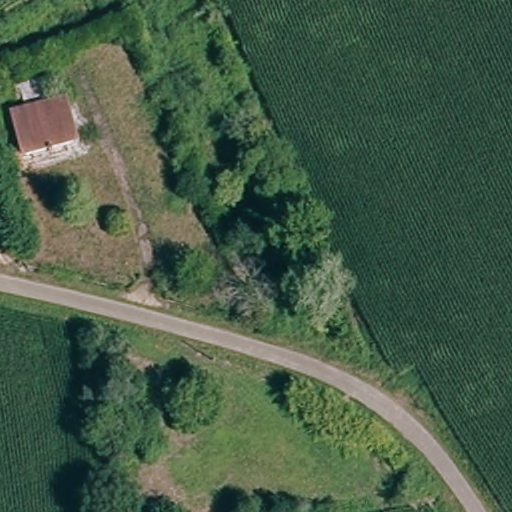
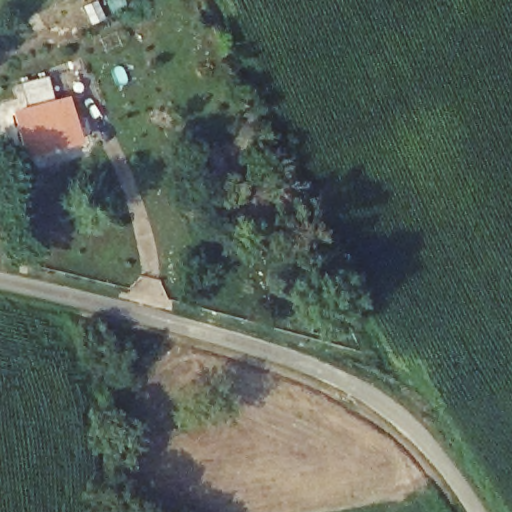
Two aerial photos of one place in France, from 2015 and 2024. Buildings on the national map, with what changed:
unchanged [(23,153),(11,109),(26,106),(21,83),(48,75),(55,100),(66,97),(78,140),(23,153)]

